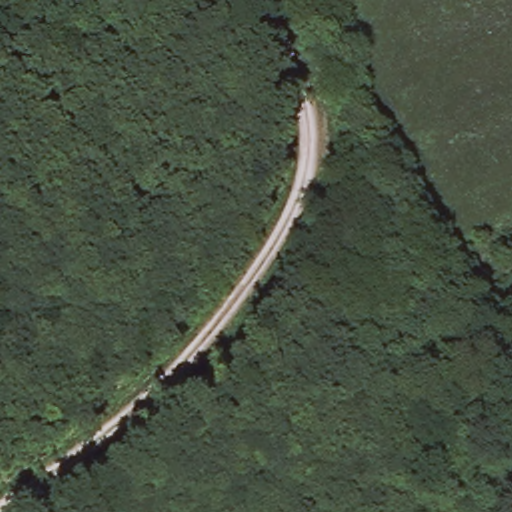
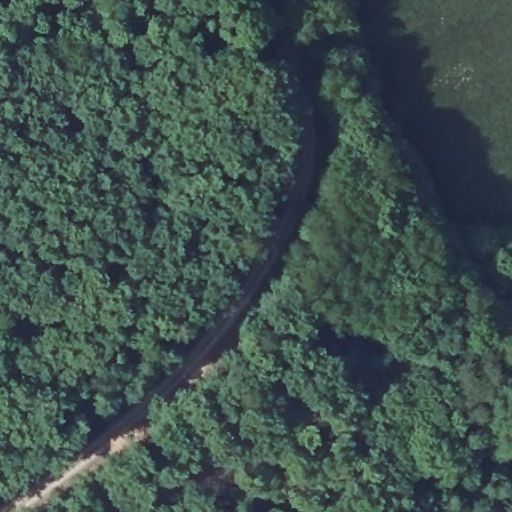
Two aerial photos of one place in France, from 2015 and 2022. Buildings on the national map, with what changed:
[]

